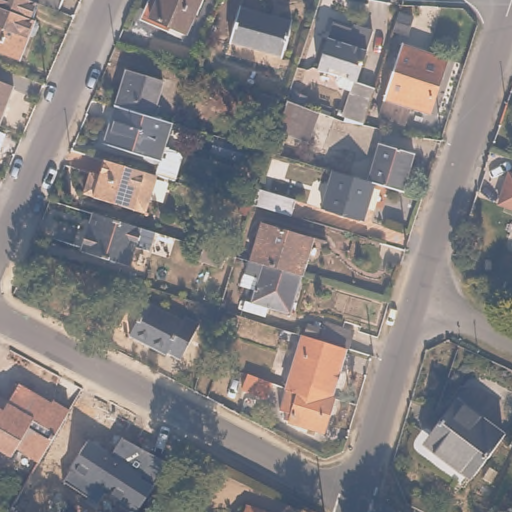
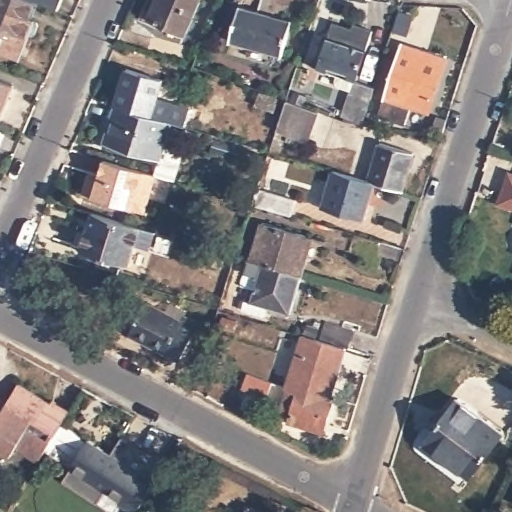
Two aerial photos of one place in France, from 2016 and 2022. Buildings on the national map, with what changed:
unchanged [(38,0),(31,19),(33,19),(18,58),(0,52),(0,0),(36,0),(38,0)]
unchanged [(56,8),(38,0),(36,0),(60,0),(56,8)]
unchanged [(184,29),(146,13),(152,0),(196,0),(184,29)]
unchanged [(291,25),(280,56),(231,39),(241,8),(291,25)]
unchanged [(365,43),(355,73),(373,79),(362,113),(345,107),(351,86),(334,80),(339,68),(316,61),(327,30),(365,43)]
unchanged [(445,61),(426,115),(409,110),(405,122),(379,113),(402,46),(445,61)]
unchanged [(126,71),(162,83),(155,104),(158,105),(154,117),(116,104),(126,71)]
unchanged [(14,85),(0,122),(0,80),(14,85)]
unchanged [(276,104),(271,118),(251,112),(256,98),(276,104)]
unchanged [(317,113),(307,144),(275,134),(285,102),(317,113)]
unchanged [(153,174),(157,160),(104,144),(116,104),(154,117),(171,122),(162,147),(178,152),(180,158),(173,181),(155,175),(153,174)]
unchanged [(5,133),(0,145),(0,131),(5,133)]
unchanged [(241,150),(238,161),(209,153),(213,141),(241,150)]
unchanged [(371,181),(383,144),(417,155),(404,192),(376,183),(371,181)]
unchanged [(282,149),(279,158),(268,154),(271,146),(282,149)]
unchanged [(155,175),(144,211),(92,196),(93,193),(84,190),(90,170),(99,173),(103,158),(153,174),(155,175)]
unchanged [(365,221),(325,208),(336,170),(371,181),(376,183),(365,221)]
unchanged [(512,207),(500,202),(511,174),(512,175),(512,207)]
unchanged [(280,198),(275,214),(252,207),(256,191),(280,198)]
unchanged [(145,228),(133,265),(86,250),(99,213),(145,228)]
unchanged [(258,255),(269,219),(312,232),(307,251),(311,253),(305,270),(268,258),(258,255)]
unchanged [(377,248),(372,267),(347,258),(353,240),(377,248)]
unchanged [(225,251),(220,264),(197,257),(202,243),(225,251)]
unchanged [(305,270),(293,309),(273,302),(269,312),(252,305),(268,258),(305,270)]
unchanged [(181,319),(184,316),(198,323),(182,356),(167,349),(166,352),(127,332),(143,300),(181,319)]
unchanged [(335,394),(302,383),(301,388),(291,385),(305,333),(321,338),(327,320),(354,328),(350,347),(348,346),(338,384),(335,394)]
unchanged [(272,378),(266,392),(242,383),(248,368),(272,378)]
unchanged [(318,428),(284,418),(286,409),(280,408),(286,384),(288,384),(291,385),(301,388),(302,383),(335,394),(329,412),(324,430),(318,428)]
unchanged [(49,401),(65,411),(35,461),(13,447),(7,456),(0,452),(0,399),(5,401),(15,384),(48,404),(49,401)]
unchanged [(503,434),(472,477),(435,450),(442,441),(433,433),(459,400),(503,434)]
unchanged [(143,473),(157,481),(141,505),(137,512),(132,512),(123,506),(127,498),(74,464),(92,435),(146,468),(143,473)]
unchanged [(243,512),(245,505),(266,512),(243,512)]

